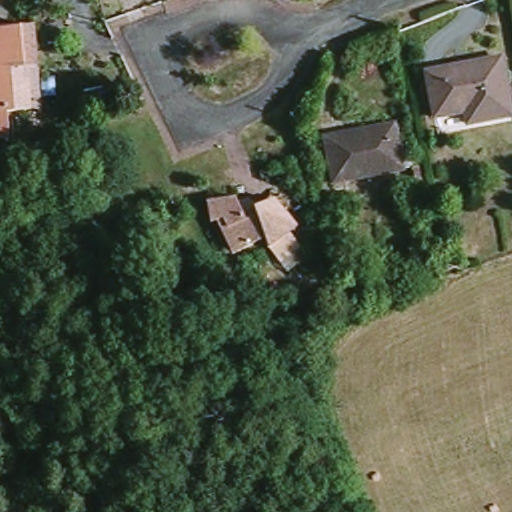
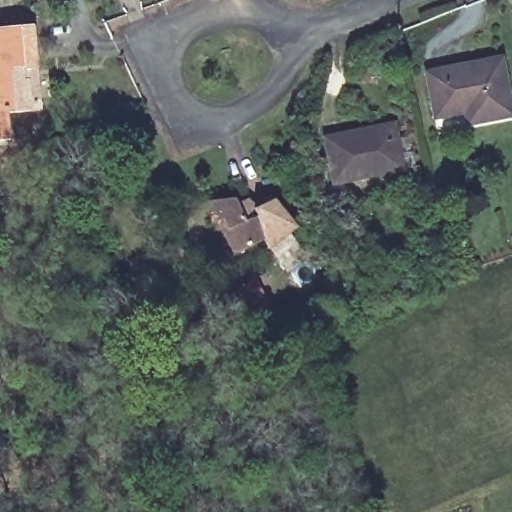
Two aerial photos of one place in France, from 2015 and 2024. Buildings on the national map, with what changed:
unchanged [(40,99),(40,107),(19,108),(21,132),(0,135),(0,71),(0,32),(42,27),(45,69),(47,98),(40,99)]
unchanged [(508,56),(512,74),(512,115),(482,122),(480,109),(448,116),(438,73),(508,56)]
unchanged [(337,140),(409,122),(419,168),(347,184),(337,140)]
unchanged [(301,247),(289,236),(282,245),(275,234),(247,248),(231,219),(217,223),(214,201),(236,196),(251,220),(263,217),(255,206),(276,194),(306,215),(319,225),(301,247)]

